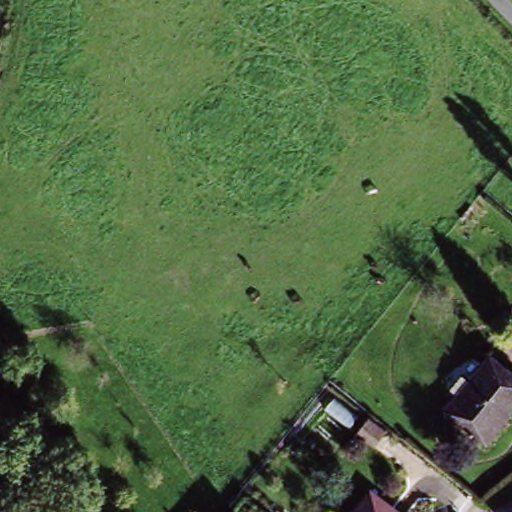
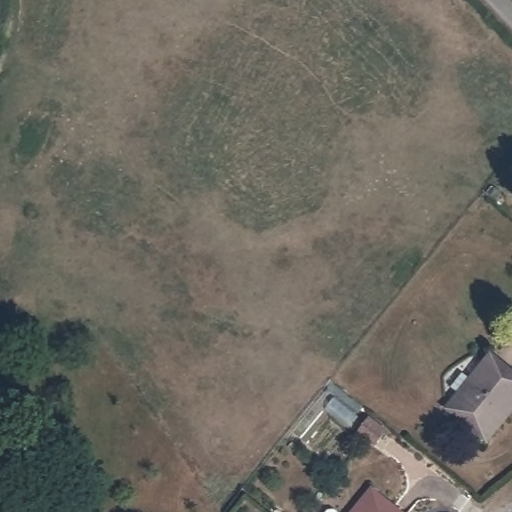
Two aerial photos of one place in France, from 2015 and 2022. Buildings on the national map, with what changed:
unchanged [(512,411),(482,448),(439,413),(453,396),(464,382),(485,357),(512,380),(512,411)]
unchanged [(374,493),(397,512),(359,512),(374,493)]

